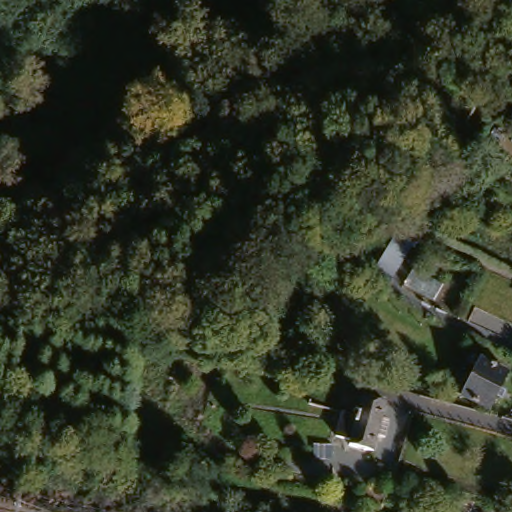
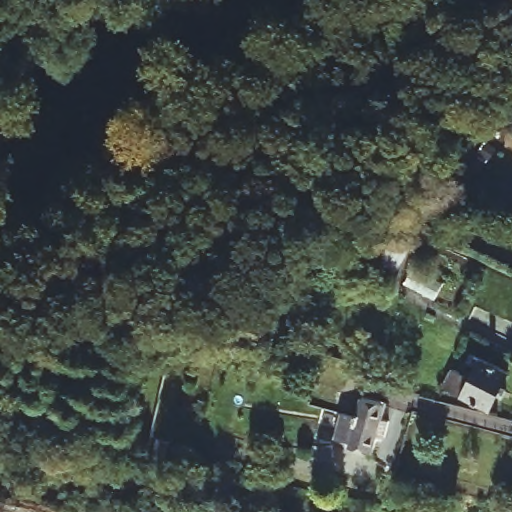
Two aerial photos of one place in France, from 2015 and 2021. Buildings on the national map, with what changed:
unchanged [(386,282),(375,276),(393,244),(404,251),(386,282)]
unchanged [(502,389),(507,392),(504,399),(498,397),(491,411),(446,388),(456,369),(469,376),(472,372),(476,373),(478,370),(477,370),(467,365),(472,355),(482,360),(509,374),(502,389)]
unchanged [(348,413),(363,417),(369,396),(394,402),(389,422),(393,423),(389,436),(386,435),(382,452),(355,445),(357,440),(342,436),(348,413)]
unchanged [(315,451),(319,451),(320,444),(340,445),(339,459),(314,459),(315,451)]

